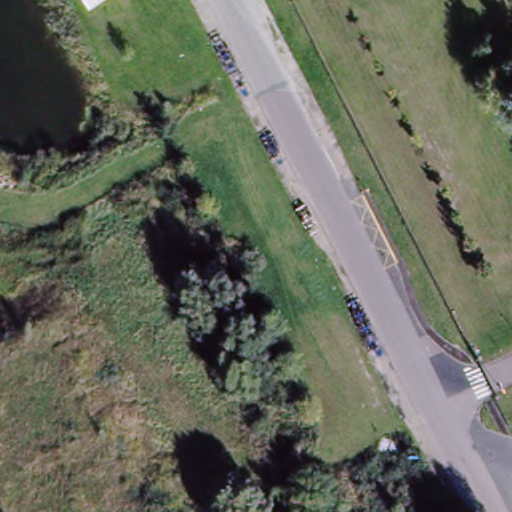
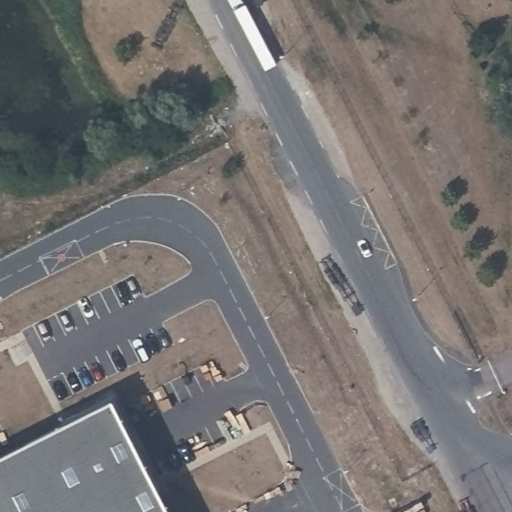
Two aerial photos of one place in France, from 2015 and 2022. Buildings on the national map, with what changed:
new [(0,512),(0,457),(108,401),(165,512),(0,512)]

